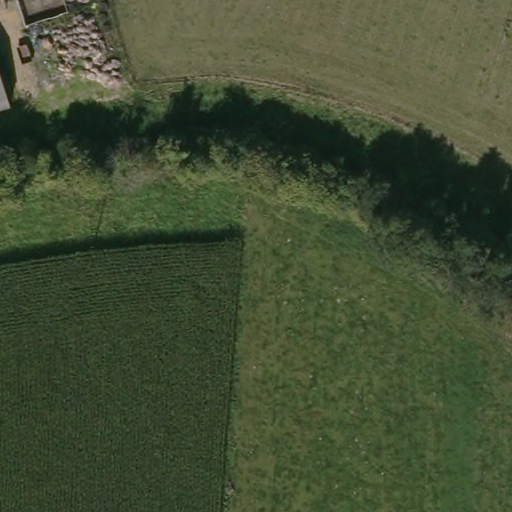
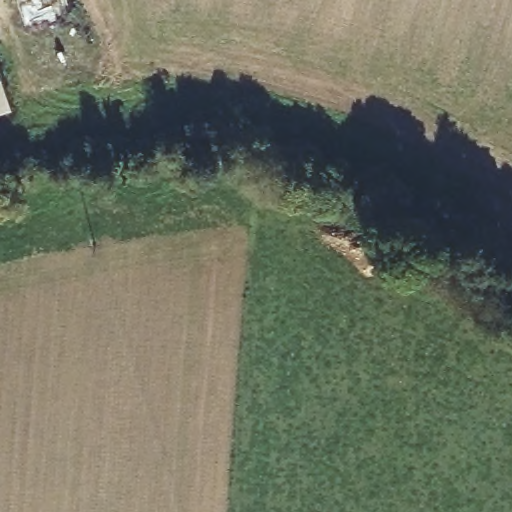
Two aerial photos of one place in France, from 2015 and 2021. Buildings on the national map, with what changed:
unchanged [(0,124),(0,73),(13,120),(0,124)]

